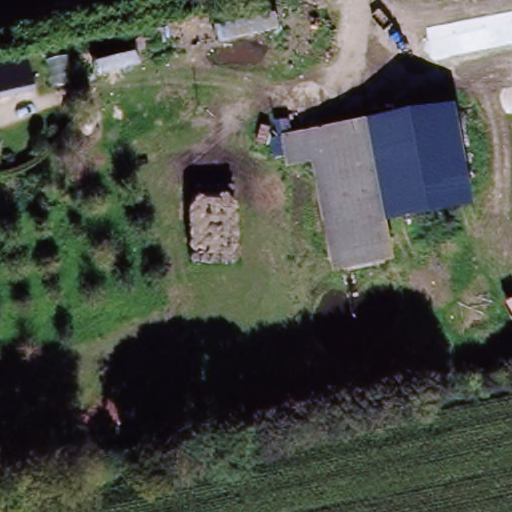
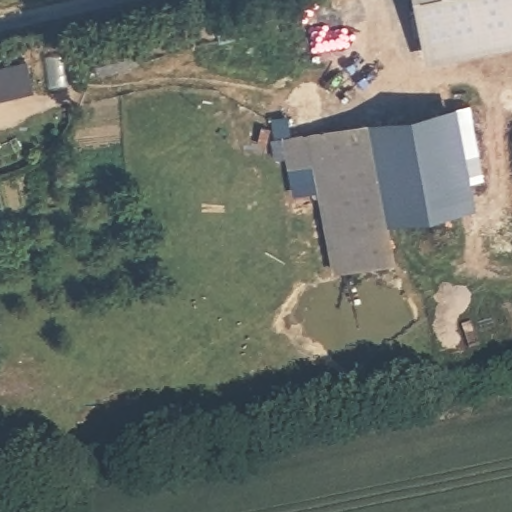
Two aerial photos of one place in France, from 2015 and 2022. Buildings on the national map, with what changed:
unchanged [(284,31),(220,44),(210,10),(254,0),(276,0),(284,31)]
new [(428,63),(415,0),(512,0),(512,46),(428,63)]
unchanged [(130,41),(134,63),(96,72),(91,49),(130,41)]
unchanged [(2,98),(0,98),(0,92),(2,98)]
unchanged [(452,105),(471,204),(385,221),(365,122),(452,105)]
unchanged [(391,254),(377,257),(354,124),(365,122),(385,221),(391,254)]
unchanged [(331,266),(310,159),(285,164),(280,137),(354,124),(377,257),(331,266)]

